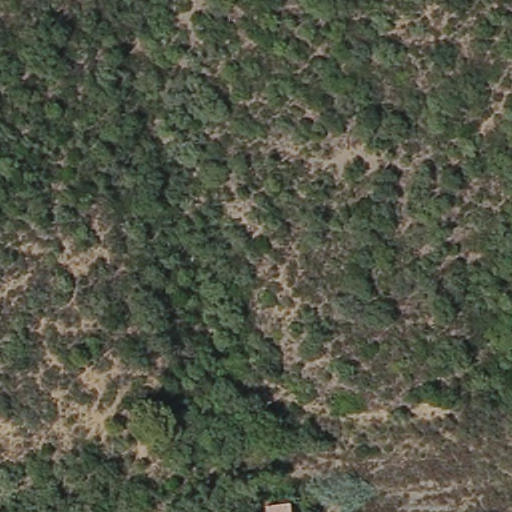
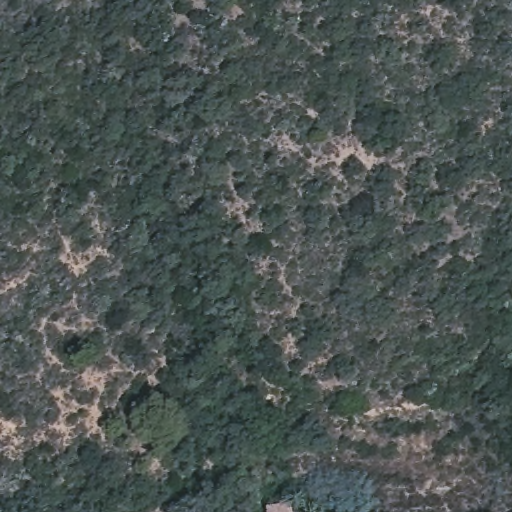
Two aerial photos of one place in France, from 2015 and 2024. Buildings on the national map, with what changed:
unchanged [(292,504),(294,512),(267,512),(266,507),(292,504)]

